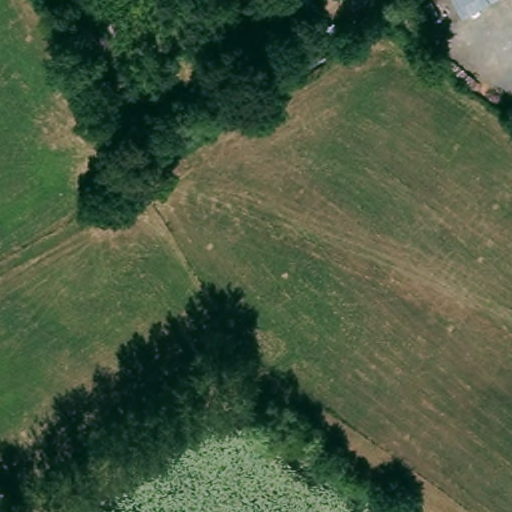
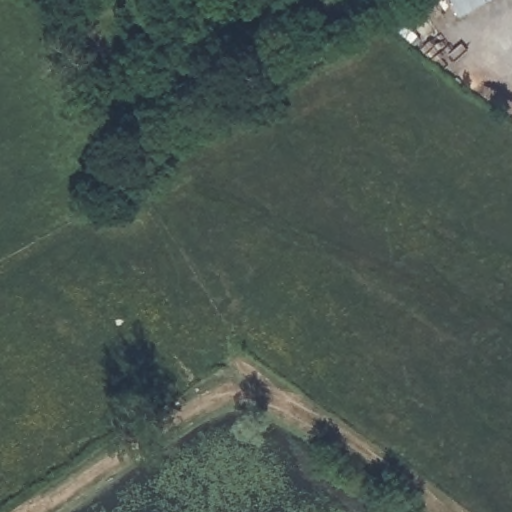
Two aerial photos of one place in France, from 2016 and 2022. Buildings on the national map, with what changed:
unchanged [(477,0),(485,0),(479,3),(477,0)]
unchanged [(489,105),(482,91),(500,82),(507,95),(489,105)]

